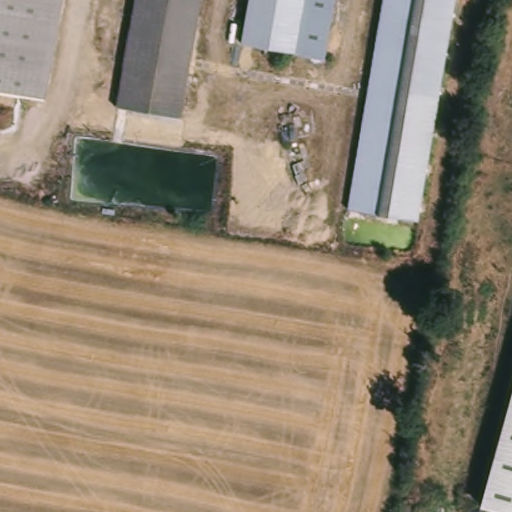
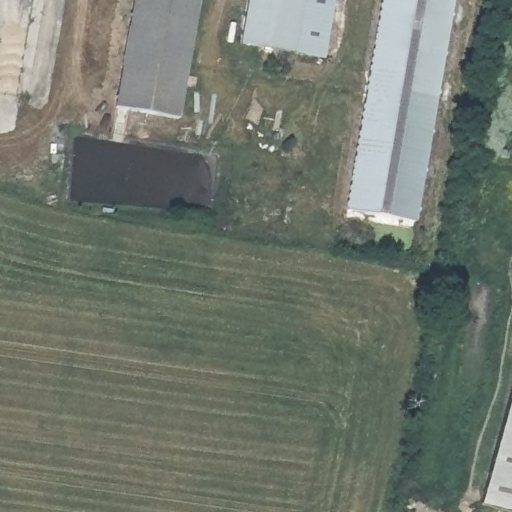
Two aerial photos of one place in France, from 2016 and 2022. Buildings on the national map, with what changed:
demolished [(46,100),(0,93),(0,0),(61,0),(46,100)]
unchanged [(177,117),(116,106),(134,0),(197,0),(177,117)]
unchanged [(321,60),(240,46),(248,0),(332,0),(321,60)]
unchanged [(381,0),(454,0),(416,218),(345,206),(381,0)]
unchanged [(488,512),(478,509),(512,385),(512,512),(488,512)]

